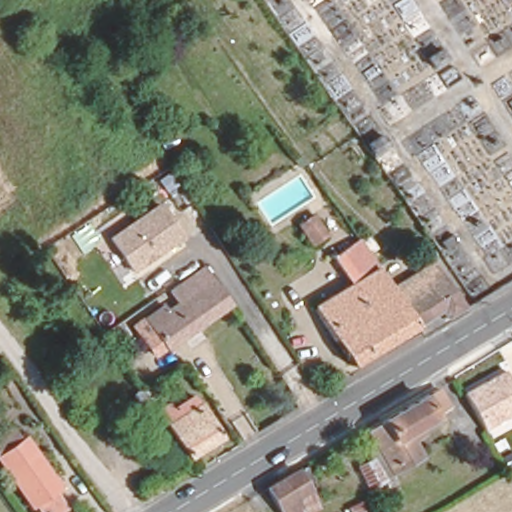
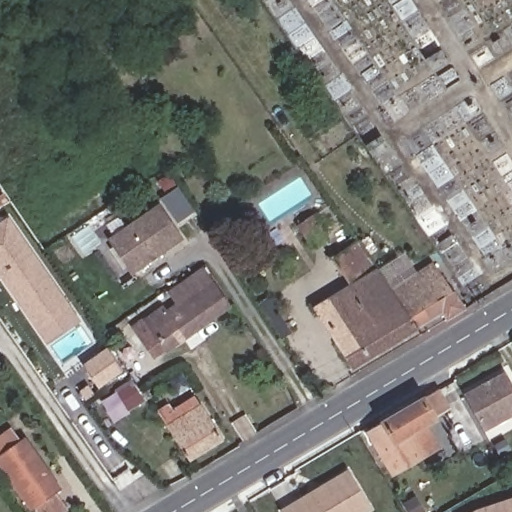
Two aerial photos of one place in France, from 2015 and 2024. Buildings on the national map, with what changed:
unchanged [(134,275),(109,237),(160,204),(186,240),(134,275)]
unchanged [(325,240),(311,248),(299,229),(312,220),(325,240)]
new [(75,320),(49,338),(0,267),(0,230),(9,224),(75,320)]
unchanged [(352,371),(315,315),(352,290),(332,262),(357,246),(363,255),(376,246),(382,256),(384,255),(390,262),(375,272),(391,295),(417,332),(352,371)]
unchanged [(144,320),(162,307),(166,312),(191,295),(184,283),(202,270),(228,306),(167,349),(144,320)]
unchanged [(447,324),(442,316),(417,332),(391,295),(422,275),(425,280),(435,273),(463,315),(447,324)]
new [(110,348),(124,370),(99,387),(85,366),(110,348)]
unchanged [(512,383),(512,415),(485,430),(462,392),(505,370),(512,383)]
unchanged [(362,470),(358,463),(372,456),(363,441),(372,436),(366,426),(438,385),(450,405),(420,422),(423,430),(412,436),(417,446),(422,455),(369,485),(365,477),(362,470)]
unchanged [(145,390),(154,402),(145,409),(136,396),(140,393),(145,390)]
unchanged [(159,413),(168,407),(171,412),(193,398),(197,405),(200,405),(221,438),(187,459),(159,413)]
unchanged [(19,442),(25,439),(59,489),(53,492),(65,510),(62,512),(39,512),(34,505),(31,508),(0,465),(0,435),(9,428),(19,442)]
new [(347,468),(360,489),(372,510),(368,512),(280,512),(278,510),(347,468)]
new [(512,497),(512,512),(474,512),(477,510),(512,497)]

